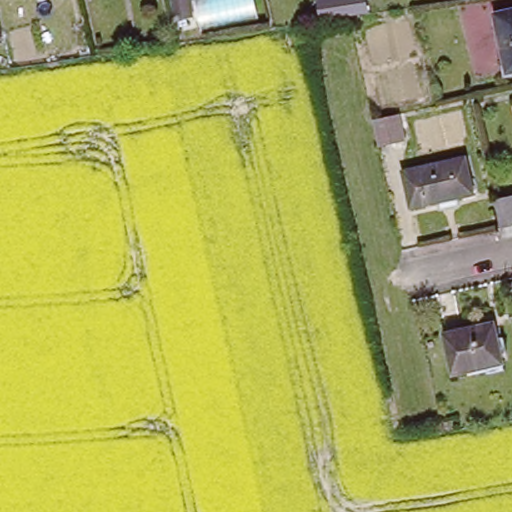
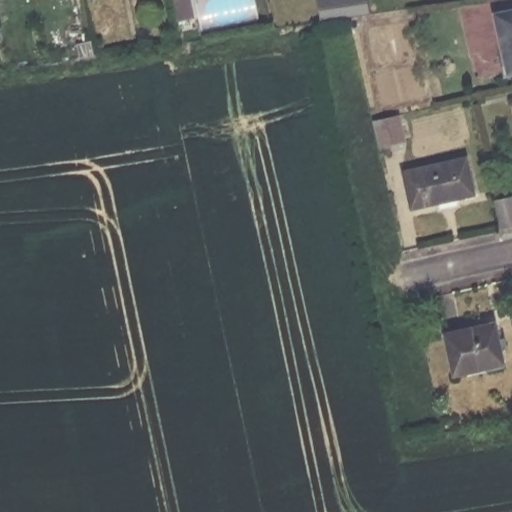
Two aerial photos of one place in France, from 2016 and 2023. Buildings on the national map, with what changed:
unchanged [(178,24),(172,0),(189,0),(194,21),(178,24)]
unchanged [(512,10),(512,71),(508,72),(502,47),(495,14),(512,10)]
unchanged [(400,112),(406,139),(379,146),(372,119),(400,112)]
unchanged [(466,156),(475,192),(412,207),(403,171),(466,156)]
unchanged [(512,194),(512,196),(512,225),(502,227),(495,197),(512,194)]
unchanged [(498,342),(504,341),(507,354),(501,356),(504,367),(471,374),(454,378),(444,338),(495,327),(498,342)]

